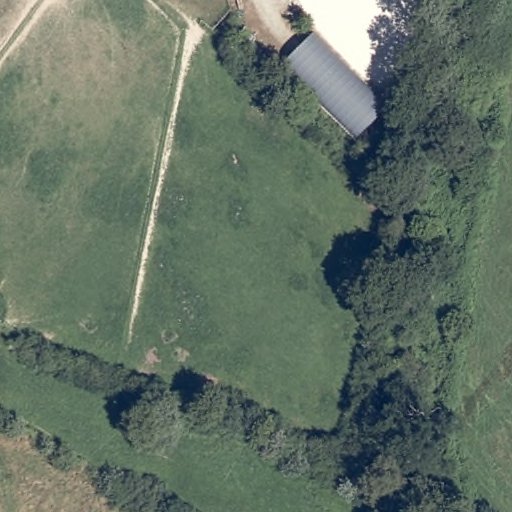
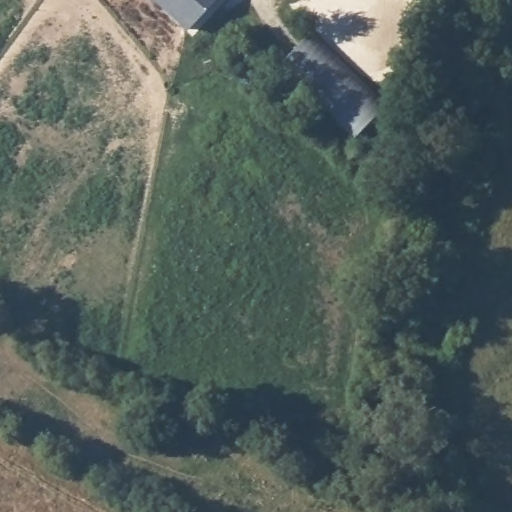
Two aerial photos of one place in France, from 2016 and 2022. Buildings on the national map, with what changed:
new [(154,0),(216,0),(187,31),(154,0)]
unchanged [(383,106),(353,136),(282,64),(312,34),(383,106)]

